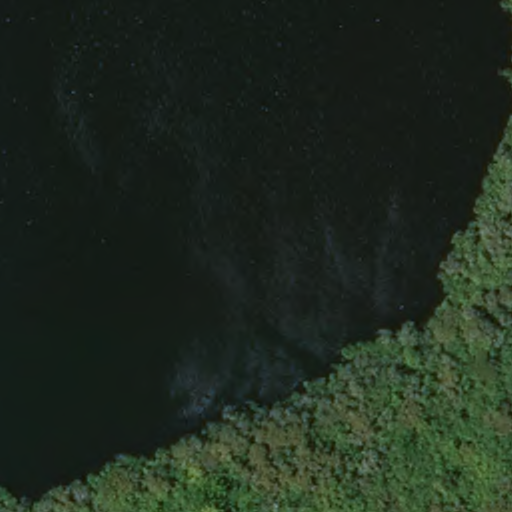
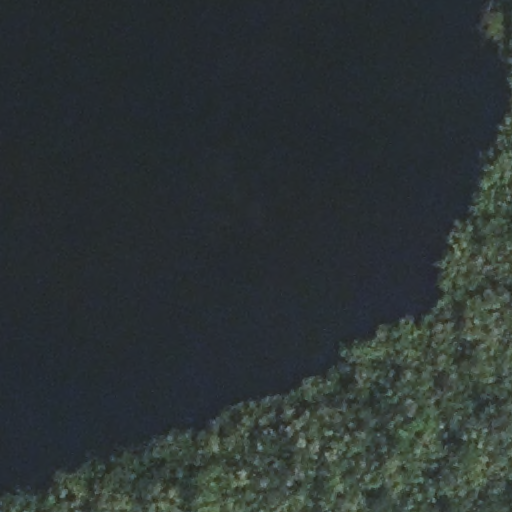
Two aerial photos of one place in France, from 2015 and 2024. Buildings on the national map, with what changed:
[]

